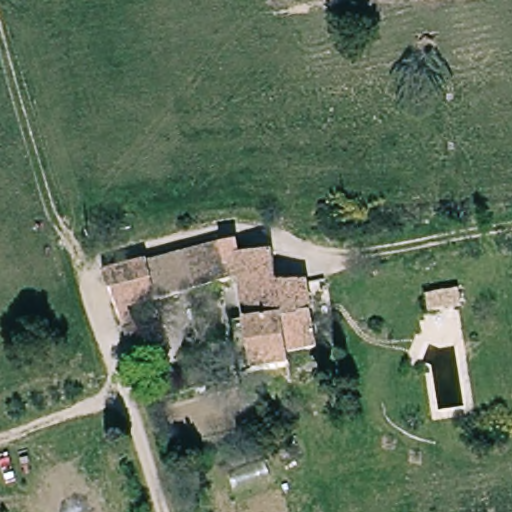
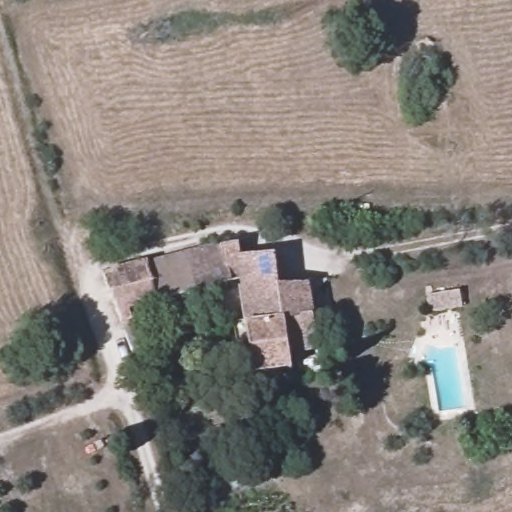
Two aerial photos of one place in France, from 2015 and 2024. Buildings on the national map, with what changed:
unchanged [(275,366),(248,373),(239,278),(132,311),(158,373),(136,381),(100,277),(217,243),(220,249),(234,246),(239,263),(272,255),(280,288),(303,281),(309,320),(314,356),(290,362),(309,433),(294,437),(275,366)]

